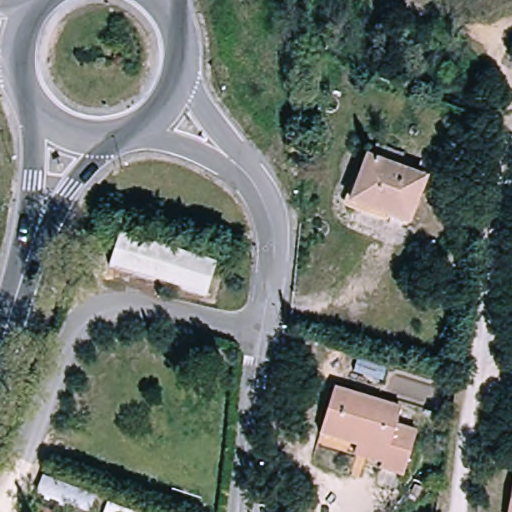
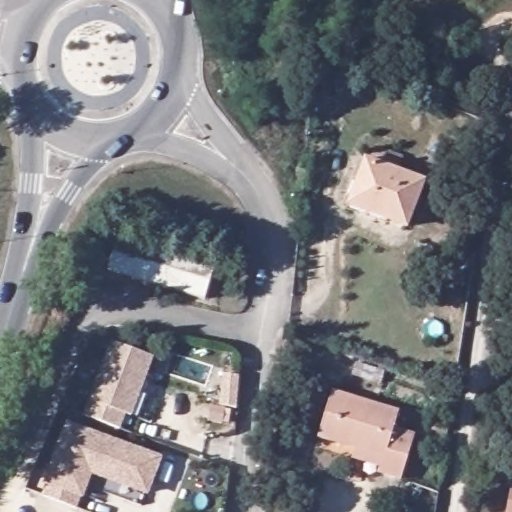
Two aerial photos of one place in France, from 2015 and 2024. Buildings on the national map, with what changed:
unchanged [(401,163),(395,177),(427,190),(407,237),(365,218),(367,213),(351,205),(366,166),(370,169),(377,154),(401,163)]
unchanged [(217,269),(207,300),(110,266),(121,235),(217,269)]
new [(132,416),(126,414),(120,429),(83,416),(110,342),(152,358),(132,416)]
unchanged [(358,464),(320,452),(335,407),(400,429),(397,444),(417,451),(403,494),(382,488),(383,482),(355,473),(358,464)]
new [(69,421),(158,457),(145,488),(90,466),(75,503),(42,490),(69,421)]
demolished [(52,482),(97,496),(90,512),(81,512),(46,498),(52,482)]
unchanged [(507,484),(512,484),(512,512),(502,512),(507,484)]
new [(82,512),(75,512),(75,509),(82,512)]

